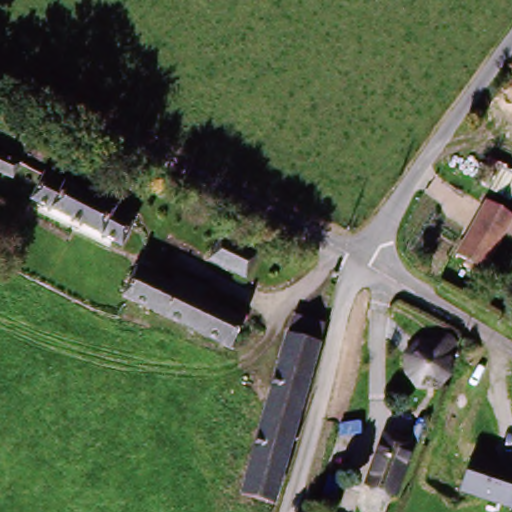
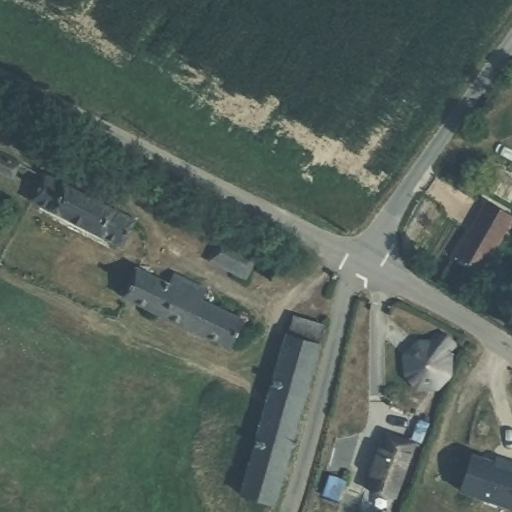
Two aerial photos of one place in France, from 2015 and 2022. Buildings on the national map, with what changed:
unchanged [(0,175),(0,147),(19,156),(8,179),(0,175)]
unchanged [(40,171),(145,219),(128,254),(24,206),(40,171)]
unchanged [(512,219),(512,236),(510,239),(500,233),(481,270),(455,256),(482,204),(512,219)]
unchanged [(216,272),(226,247),(263,262),(253,287),(216,272)]
unchanged [(123,301),(139,268),(166,281),(170,272),(205,289),(200,300),(240,320),(226,352),(123,301)]
unchanged [(255,505),(235,496),(292,346),(300,349),(307,331),(322,336),(316,355),(304,391),(290,424),(255,505)]
unchanged [(441,392),(435,394),(423,396),(409,391),(398,380),(395,373),(393,363),(398,349),(408,339),(415,336),(426,335),(436,338),(445,342),(451,351),(455,357),(456,368),(452,382),(441,392)]
unchanged [(411,446),(392,494),(364,483),(383,435),(411,446)]
unchanged [(472,454),(512,465),(512,508),(461,493),(472,454)]

